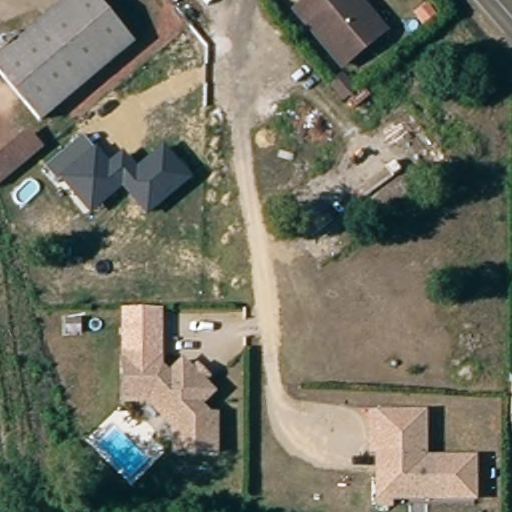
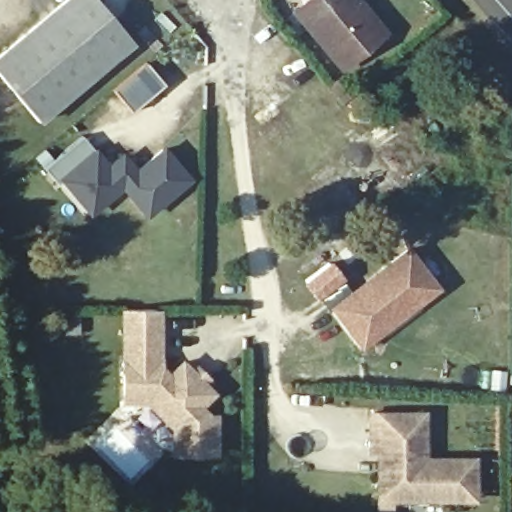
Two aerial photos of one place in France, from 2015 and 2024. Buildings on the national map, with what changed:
unchanged [(0,78),(0,51),(61,0),(97,0),(133,42),(105,67),(37,124),(0,78)]
unchanged [(336,65),(305,28),(324,11),(315,1),(315,0),(355,0),(379,27),(336,65)]
demolished [(0,186),(0,154),(27,130),(45,149),(0,186)]
unchanged [(90,214),(62,181),(60,184),(46,167),(83,135),(93,149),(96,147),(109,162),(122,151),(136,167),(164,142),(194,177),(146,217),(121,188),(90,214)]
new [(441,291),(361,351),(329,306),(409,246),(441,291)]
unchanged [(124,361),(121,308),(163,308),(159,361),(124,361)]
unchanged [(174,428),(147,402),(124,402),(124,396),(124,361),(159,361),(159,367),(169,377),(182,363),(212,393),(199,407),(209,417),(215,417),(215,454),(180,454),(174,455),(174,428)]
unchanged [(395,503),(389,503),(383,503),(383,502),(382,471),(382,450),(375,450),(375,430),(375,411),(419,411),(420,457),(470,456),(470,497),(440,497),(395,497),(395,503)]

